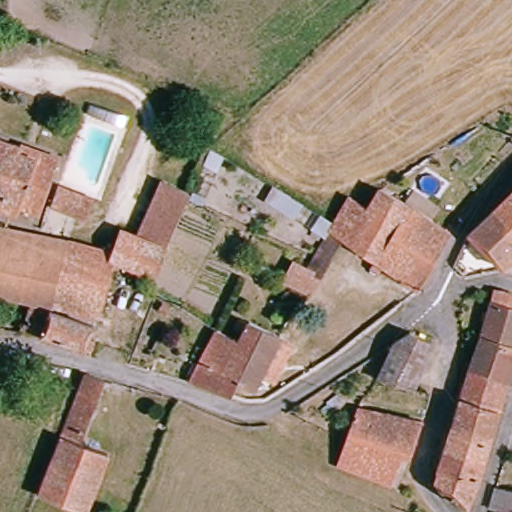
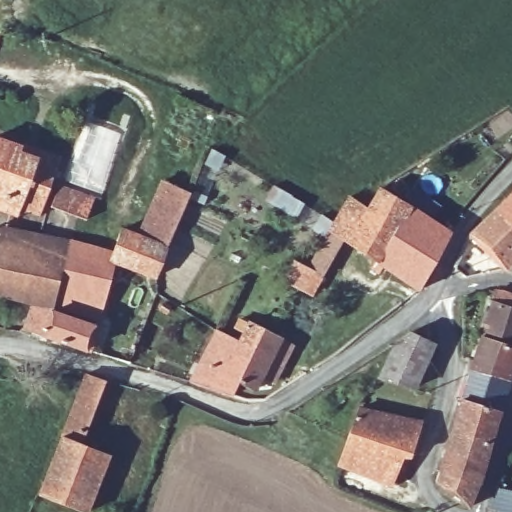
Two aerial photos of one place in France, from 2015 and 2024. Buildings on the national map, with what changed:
unchanged [(42,209),(38,218),(16,211),(14,217),(0,212),(0,144),(20,150),(22,146),(61,160),(57,168),(49,191),(82,201),(74,220),(42,209)]
unchanged [(191,192),(169,245),(137,232),(160,179),(191,192)]
unchanged [(420,288),(416,291),(342,245),(309,299),(301,296),(282,284),(293,267),(300,272),(331,223),(347,198),(366,210),(378,191),(451,234),(420,288)]
unchanged [(487,217),(512,192),(512,237),(487,217)]
unchanged [(499,269),(467,241),(471,233),(487,217),(512,237),(512,261),(501,269),(499,269)]
unchanged [(0,298),(0,229),(67,246),(59,270),(46,313),(26,307),(0,298)]
unchanged [(110,272),(105,258),(106,255),(117,232),(123,234),(141,241),(128,278),(110,272)]
unchanged [(128,278),(141,241),(166,251),(152,286),(128,278)]
unchanged [(102,295),(59,270),(67,246),(106,255),(105,258),(110,272),(102,295)]
unchanged [(59,270),(102,295),(92,327),(46,313),(59,270)]
unchanged [(508,302),(512,307),(512,353),(481,342),(491,298),(508,302)]
unchanged [(28,343),(16,340),(26,307),(46,313),(44,320),(89,334),(85,352),(90,353),(87,363),(28,343)]
unchanged [(227,377),(240,347),(251,327),(279,339),(254,390),(240,383),(227,377)]
unchanged [(411,390),(379,381),(395,342),(408,333),(433,343),(411,390)]
unchanged [(190,386),(213,336),(240,347),(227,377),(240,383),(232,397),(190,386)]
unchanged [(512,353),(512,377),(499,419),(459,408),(478,354),(481,342),(512,353)]
unchanged [(105,385),(83,445),(108,456),(88,512),(83,512),(38,495),(84,378),(105,385)]
unchanged [(483,470),(445,455),(459,408),(499,419),(483,470)]
unchanged [(410,461),(399,457),(390,483),(344,467),(340,465),(356,412),(422,424),(410,461)]
unchanged [(434,489),(437,481),(445,455),(483,470),(476,493),(469,511),(434,489)]
unchanged [(503,493),(512,495),(512,512),(497,512),(503,493)]

